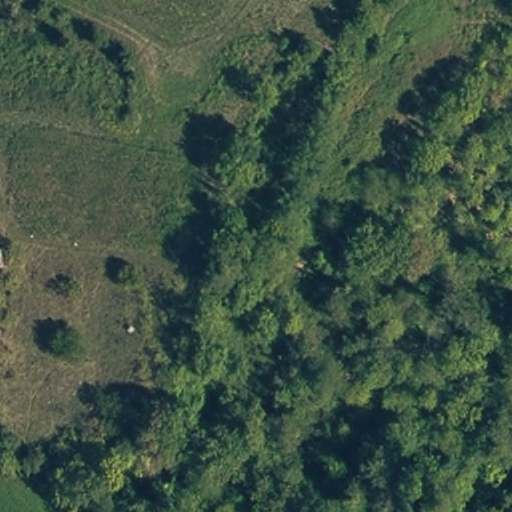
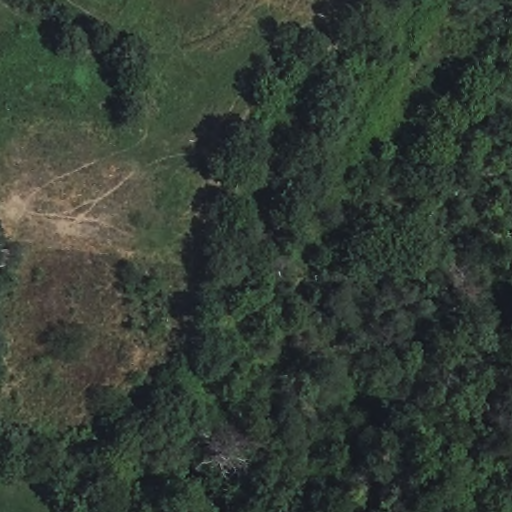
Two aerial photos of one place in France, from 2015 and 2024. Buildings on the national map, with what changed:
unchanged [(0,267),(0,244),(6,245),(6,267),(0,267)]

